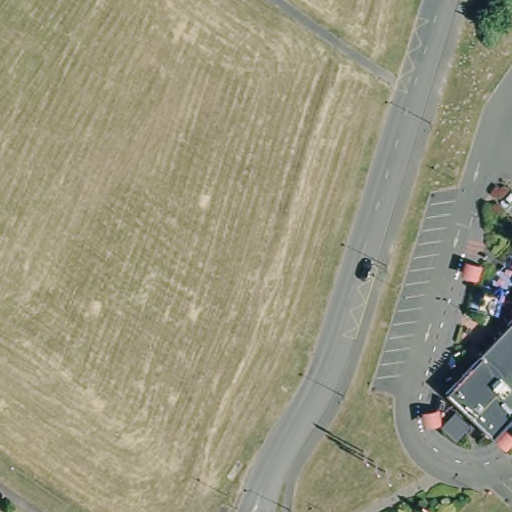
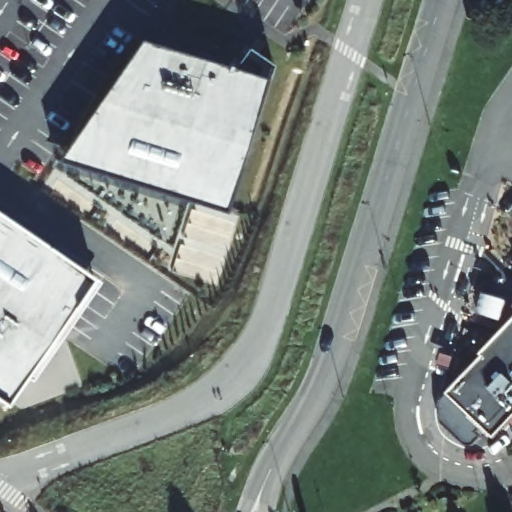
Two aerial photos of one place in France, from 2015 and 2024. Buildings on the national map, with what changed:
new [(231,67),(248,47),(272,63),(226,210),(60,158),(141,38),(231,67)]
new [(91,276),(100,283),(33,382),(24,375),(5,402),(0,399),(0,214),(91,276)]
unchanged [(512,301),(512,307),(508,304),(512,301)]
unchanged [(476,355),(473,353),(512,312),(512,413),(487,437),(440,392),(476,355)]

